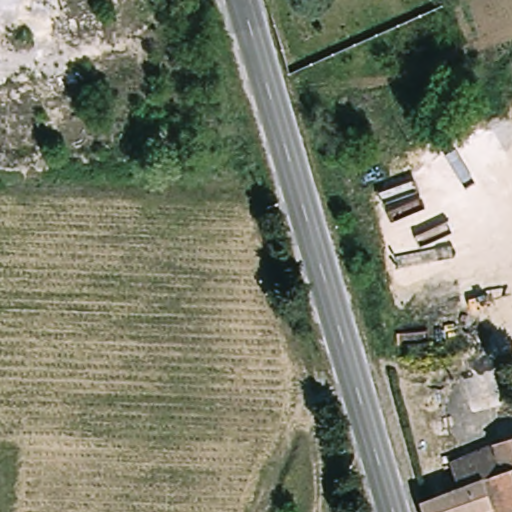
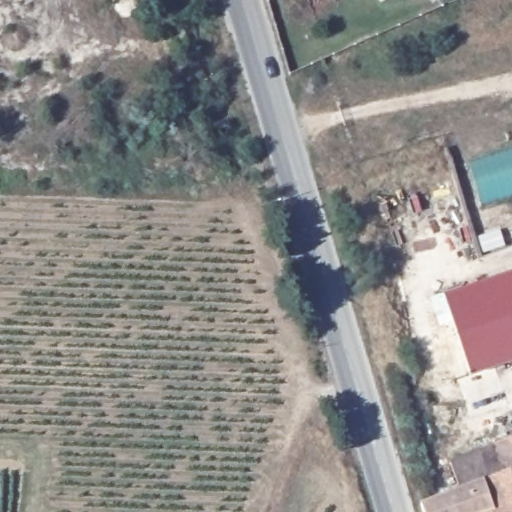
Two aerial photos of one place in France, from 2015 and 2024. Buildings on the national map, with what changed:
new [(483,208),(469,164),(512,150),(512,199),(483,208)]
new [(468,375),(442,294),(512,272),(512,361),(468,375)]
unchanged [(494,440),(512,434),(512,494),(494,440)]
unchanged [(450,458),(494,440),(512,494),(512,512),(494,512),(492,505),(471,512),(424,512),(421,499),(459,484),(450,458)]

